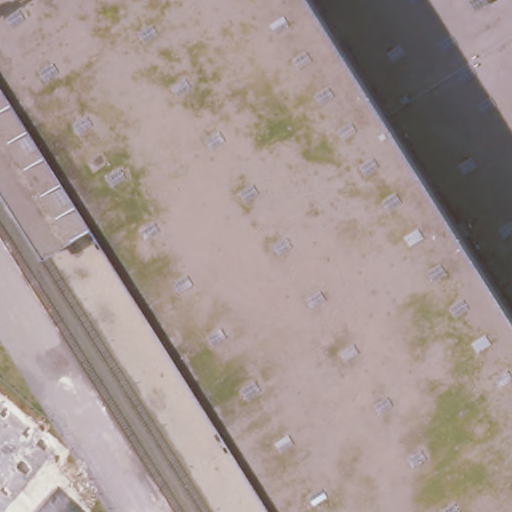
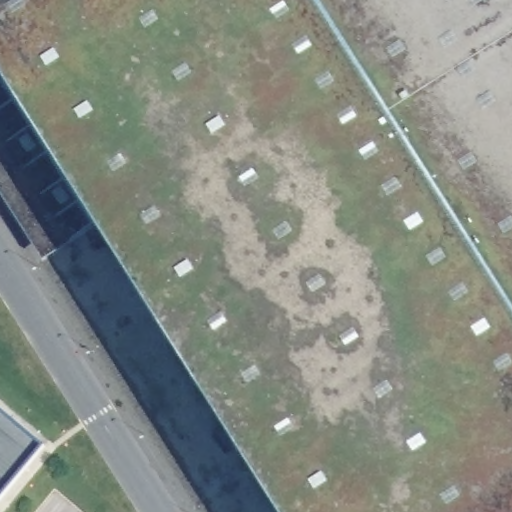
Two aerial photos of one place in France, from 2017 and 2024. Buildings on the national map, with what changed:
unchanged [(16,244),(0,219),(0,0),(512,0),(512,512),(282,512),(84,200),(16,244)]
new [(46,448),(0,505),(0,410),(46,448)]

